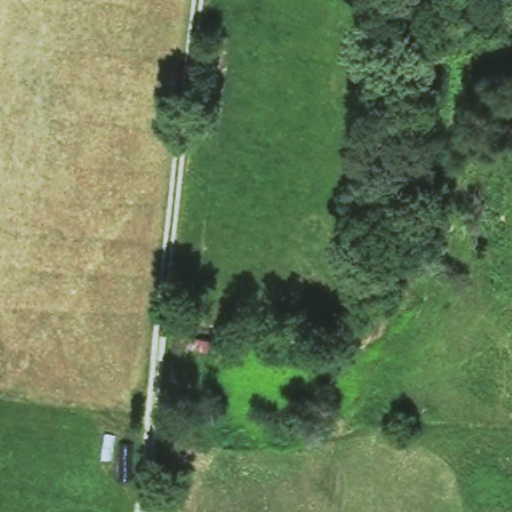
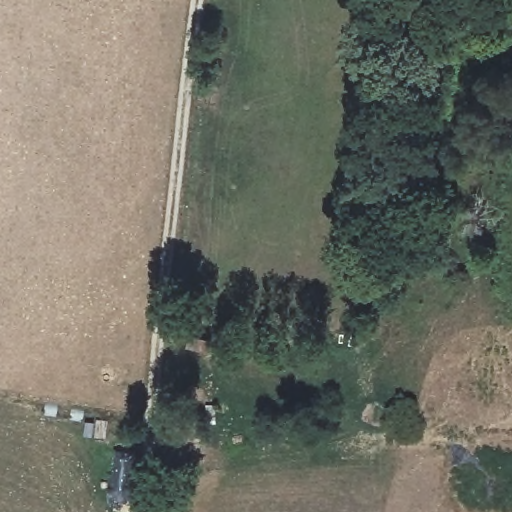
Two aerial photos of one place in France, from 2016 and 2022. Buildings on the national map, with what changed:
unchanged [(211,352),(183,351),(186,334),(213,335),(211,352)]

